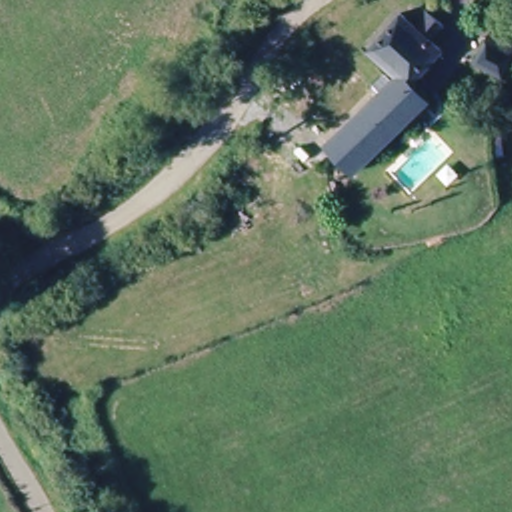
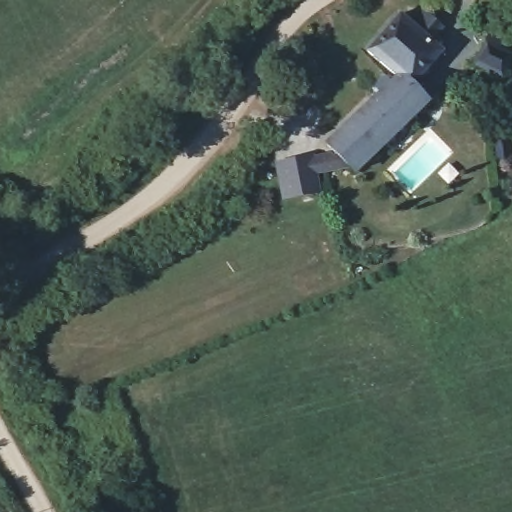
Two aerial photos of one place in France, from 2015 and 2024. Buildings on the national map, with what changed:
unchanged [(394,77),(370,51),(405,20),(419,31),(423,27),(417,20),(424,13),(430,20),(441,11),(448,20),(442,30),(444,34),(432,47),(443,58),(409,91),(420,106),(350,170),(338,159),(334,154),(325,144),(394,77)]
unchanged [(469,73),(486,46),(500,56),(496,64),(508,75),(496,94),(469,73)]
new [(314,152),(314,156),(334,154),(338,159),(350,170),(319,174),(322,192),(283,199),(276,161),(314,152)]

